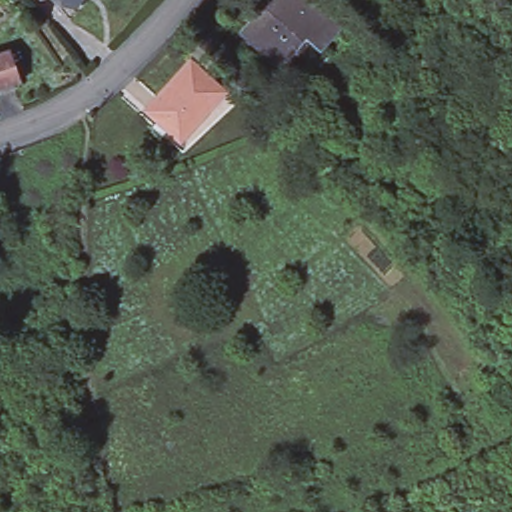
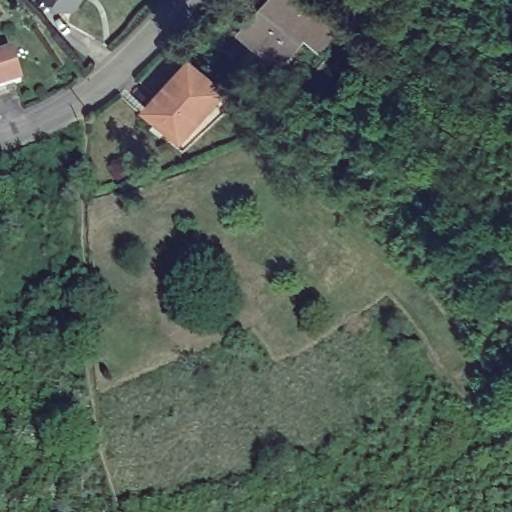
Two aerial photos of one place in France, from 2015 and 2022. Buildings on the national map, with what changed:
unchanged [(69,0),(80,0),(76,5),(69,0)]
unchanged [(275,0),(319,0),(344,24),(326,42),(311,29),(284,57),(250,26),(271,4),(275,0)]
unchanged [(13,52),(21,86),(0,92),(0,55),(13,52)]
unchanged [(191,61),(225,94),(179,143),(145,110),(191,61)]

